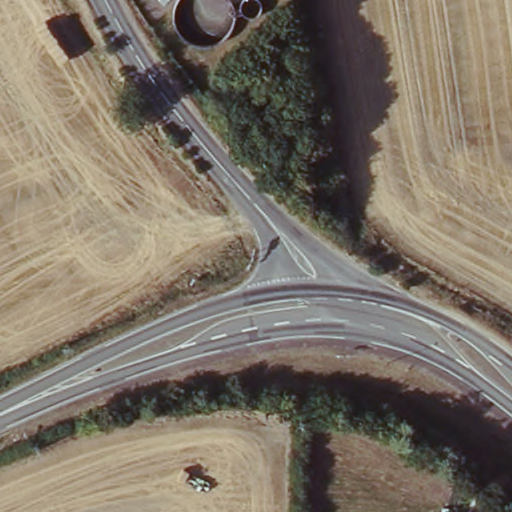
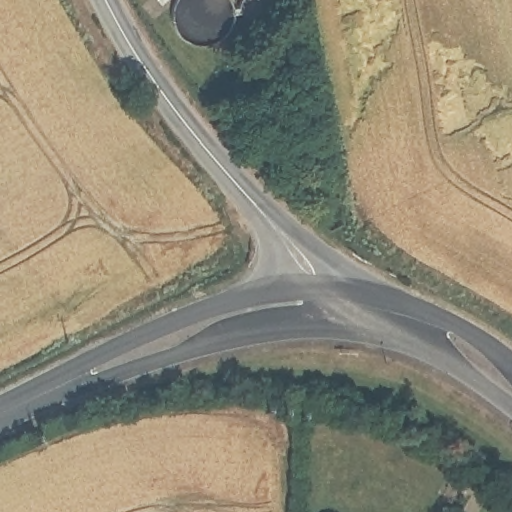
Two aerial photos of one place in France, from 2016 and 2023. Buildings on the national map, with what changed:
[]

